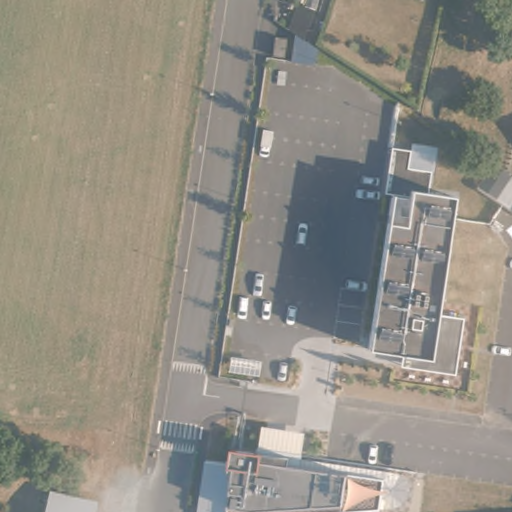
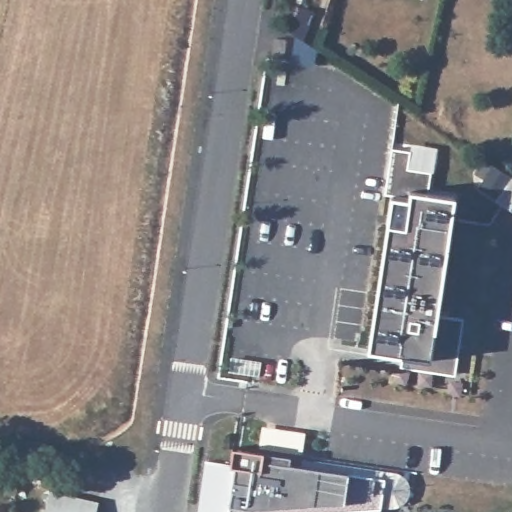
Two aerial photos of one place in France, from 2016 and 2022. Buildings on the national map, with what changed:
unchanged [(271,38),(282,40),(280,58),(269,56),(271,38)]
unchanged [(409,152),(406,170),(430,172),(428,192),(452,196),(435,314),(463,318),(455,376),(398,369),(400,355),(366,351),(367,342),(360,341),(390,150),(409,152)]
unchanged [(509,179),(495,200),(476,187),(490,166),(509,179)]
unchanged [(509,210),(512,206),(512,212),(509,210)]
unchanged [(300,454),(300,460),(390,473),(399,474),(407,481),(407,493),(405,500),(397,506),(317,512),(225,512),(230,467),(232,449),(291,454),(300,454)]
unchanged [(97,512),(42,512),(48,489),(100,502),(97,512)]

